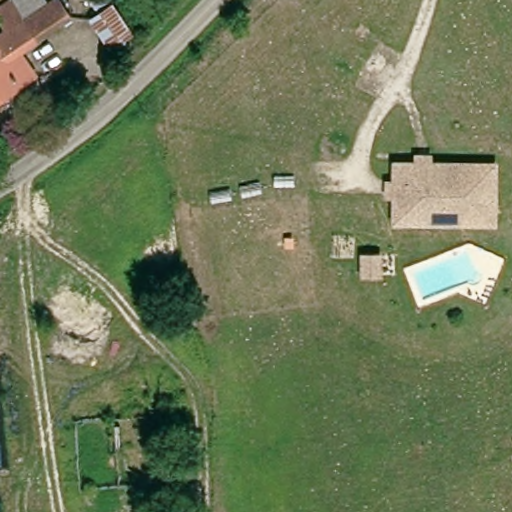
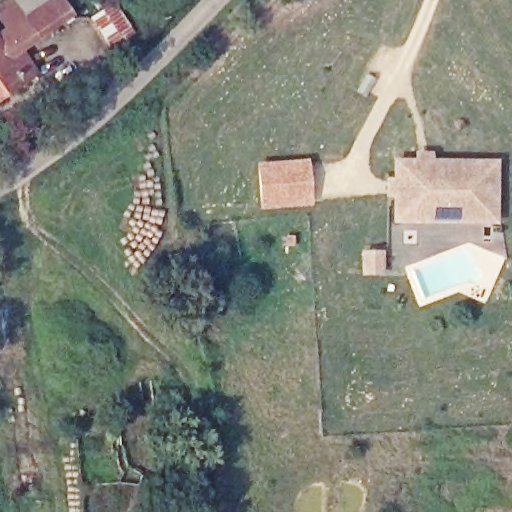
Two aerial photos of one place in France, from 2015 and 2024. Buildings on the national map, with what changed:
unchanged [(20,0),(32,17),(50,4),(65,24),(11,66),(25,86),(0,105),(0,15),(5,12),(20,0)]
unchanged [(122,6),(143,33),(123,48),(101,22),(122,6)]
new [(260,211),(255,164),(307,160),(311,209),(260,211)]
unchanged [(392,187),(393,167),(414,168),(414,160),(427,161),(427,168),(493,170),(492,213),(392,211),(392,200),(384,200),(385,187),(392,187)]
unchanged [(392,211),(492,213),(491,229),(391,226),(392,211)]
unchanged [(379,268),(364,268),(364,248),(379,248),(379,268)]

